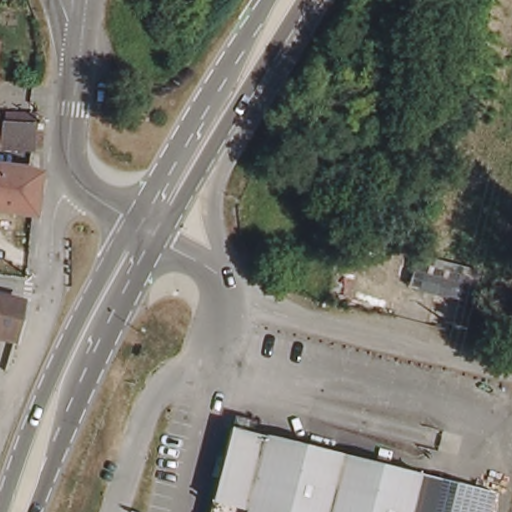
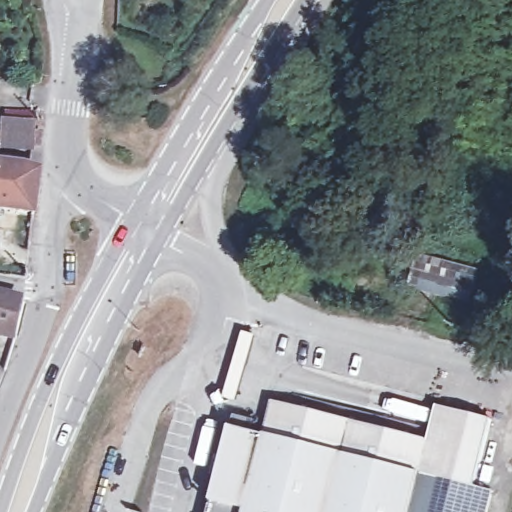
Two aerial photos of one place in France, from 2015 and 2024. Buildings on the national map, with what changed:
unchanged [(31,150),(1,147),(2,121),(34,122),(31,150)]
unchanged [(40,146),(34,146),(35,132),(41,133),(40,146)]
unchanged [(33,174),(43,177),(38,216),(0,212),(0,169),(33,174)]
unchanged [(479,279),(472,310),(409,293),(418,262),(479,279)]
unchanged [(28,306),(20,342),(0,339),(0,299),(28,306)]
new [(263,430),(272,400),(428,438),(437,404),(492,418),(474,490),(336,455),(261,436),(263,430)]
unchanged [(494,512),(218,512),(238,430),(498,496),(494,512)]

